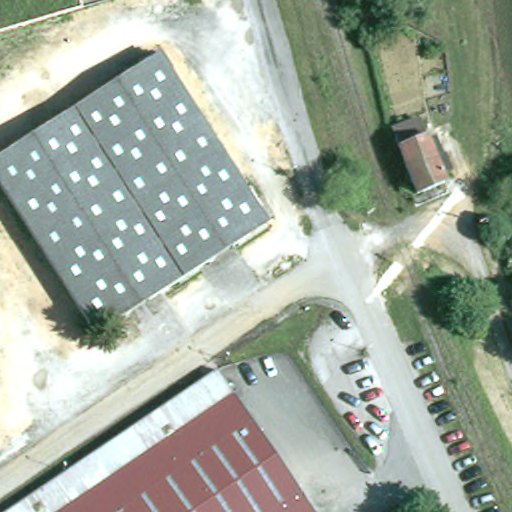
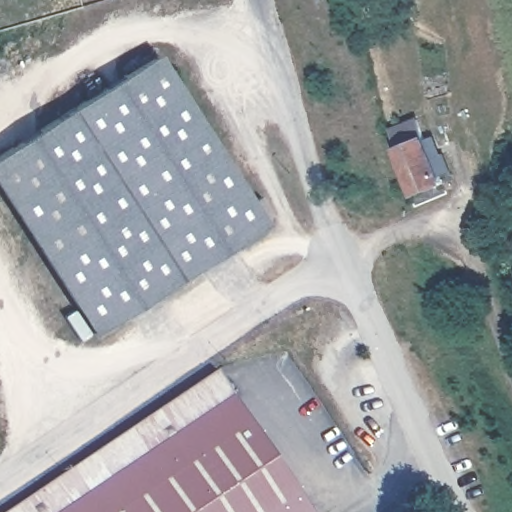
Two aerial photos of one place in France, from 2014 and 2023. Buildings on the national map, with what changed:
unchanged [(273,222),(99,335),(0,182),(0,160),(160,57),(273,222)]
unchanged [(452,181),(440,185),(442,192),(417,200),(403,157),(395,135),(421,125),(428,149),(437,147),(441,164),(447,162),(452,181)]
unchanged [(314,512),(9,512),(218,368),(314,512)]

